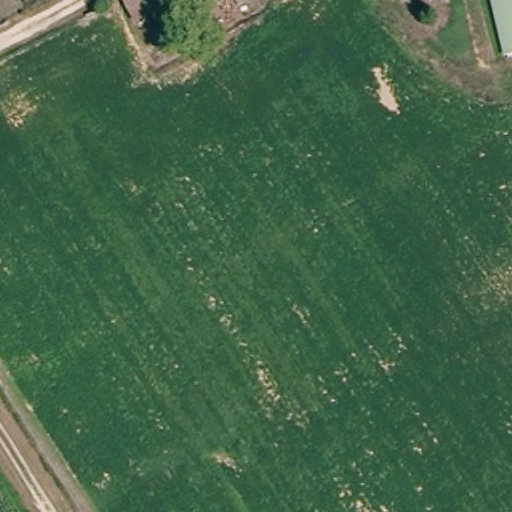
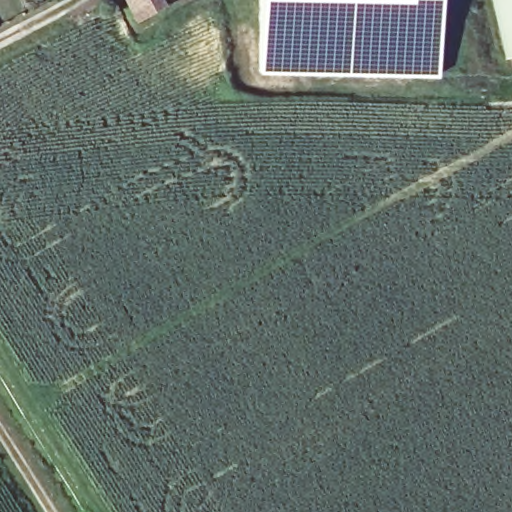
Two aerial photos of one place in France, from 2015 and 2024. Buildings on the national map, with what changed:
unchanged [(141,25),(124,0),(156,0),(163,9),(141,25)]
new [(261,0),(437,0),(437,76),(261,73),(261,0)]
unchanged [(509,57),(494,0),(512,0),(512,56),(509,57)]

